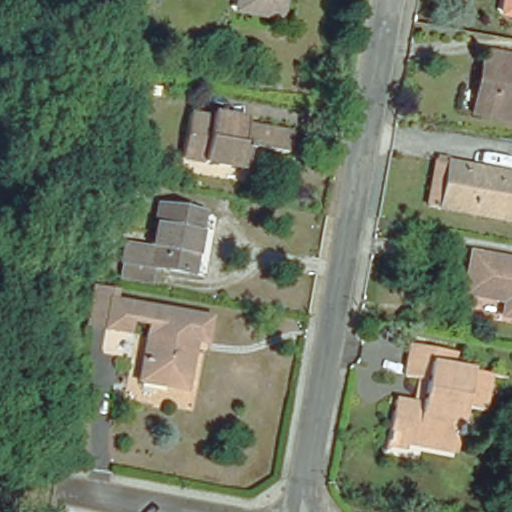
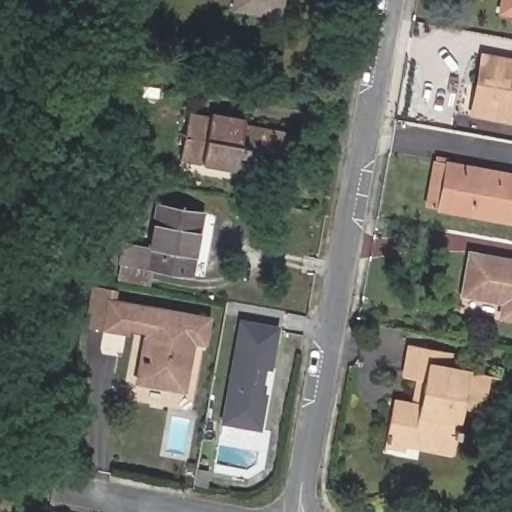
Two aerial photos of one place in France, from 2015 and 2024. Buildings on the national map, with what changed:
unchanged [(235,0),(282,0),(280,10),(235,2),(235,0)]
unchanged [(503,0),(512,0),(512,9),(501,7),(503,0)]
unchanged [(476,88),(485,44),(494,45),(512,48),(512,111),(473,104),(476,88)]
unchanged [(292,128),(289,149),(249,141),(245,167),(182,156),(191,105),(245,114),(244,119),(292,128)]
unchanged [(512,216),(446,204),(424,199),(432,155),(512,170),(512,216)]
unchanged [(120,260),(120,258),(105,255),(100,249),(102,242),(110,239),(123,241),(126,224),(150,229),(159,185),(201,194),(190,255),(151,248),(147,266),(120,260)]
unchanged [(500,292),(459,285),(466,244),(512,251),(512,309),(498,307),(500,292)]
unchanged [(145,315),(124,312),(121,322),(83,315),(90,278),(105,280),(103,290),(204,309),(200,333),(187,331),(179,380),(134,372),(145,315)]
new [(220,423),(240,319),(281,327),(273,371),(267,370),(263,391),(269,393),(262,431),(220,423)]
unchanged [(390,388),(422,394),(426,372),(400,367),(406,335),(450,344),(448,359),(485,366),(478,400),(458,396),(449,443),(402,434),(401,439),(381,436),(390,388)]

